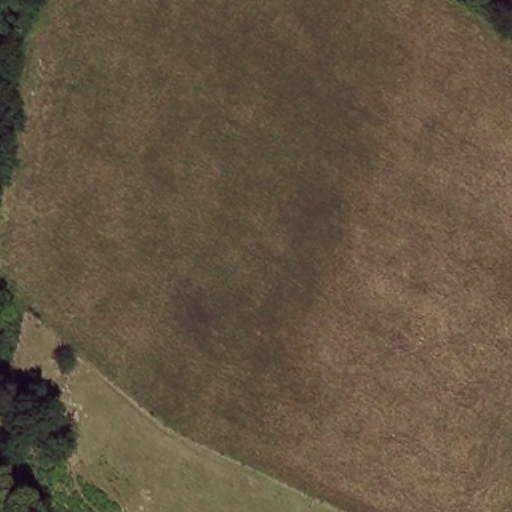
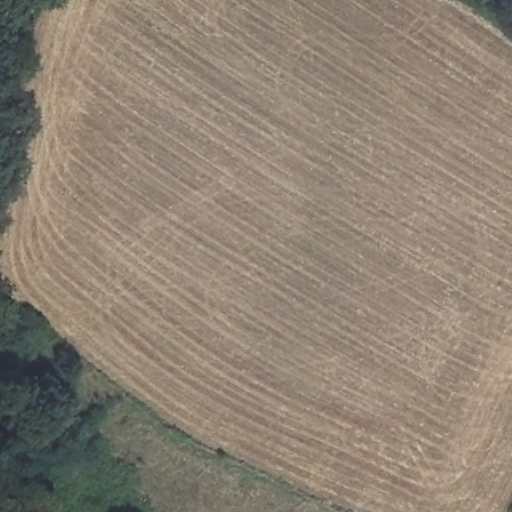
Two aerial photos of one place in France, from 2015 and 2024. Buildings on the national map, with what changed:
[]

